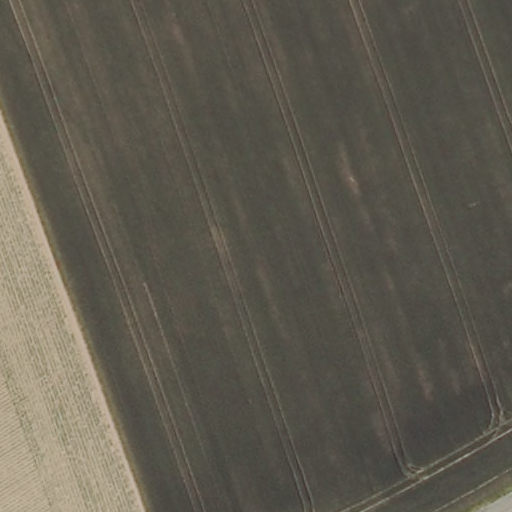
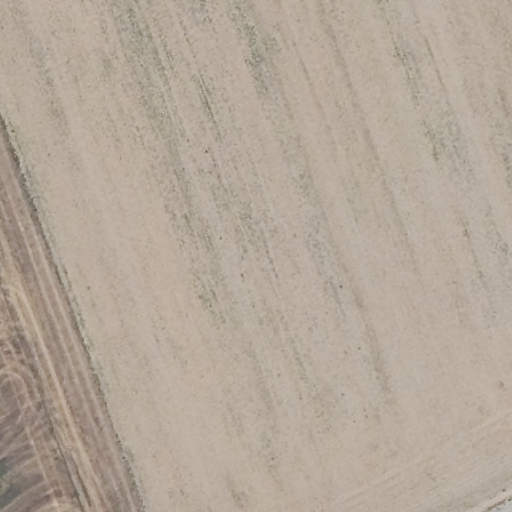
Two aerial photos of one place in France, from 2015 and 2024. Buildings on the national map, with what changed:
[]

